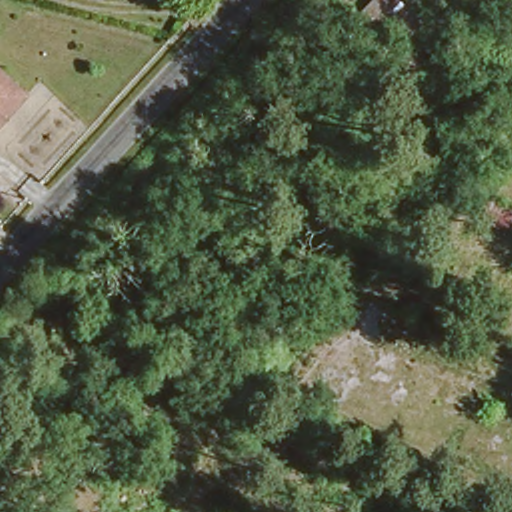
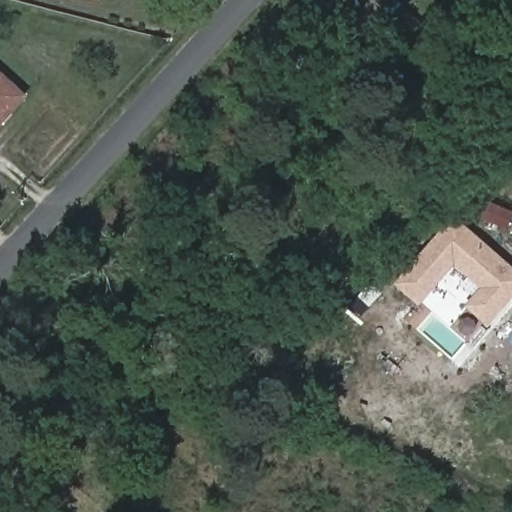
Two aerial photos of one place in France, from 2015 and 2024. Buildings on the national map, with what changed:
unchanged [(15,100),(0,116),(0,88),(15,100)]
unchanged [(484,194),(512,208),(512,222),(509,229),(472,212),(484,194)]
new [(452,219),(467,225),(512,265),(512,300),(489,326),(466,306),(479,289),(456,265),(420,306),(395,284),(452,219)]

